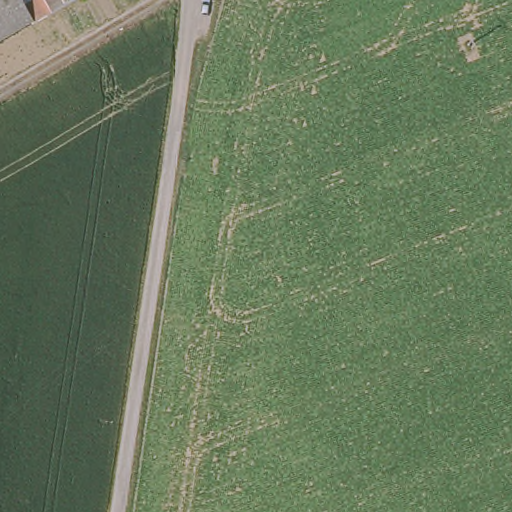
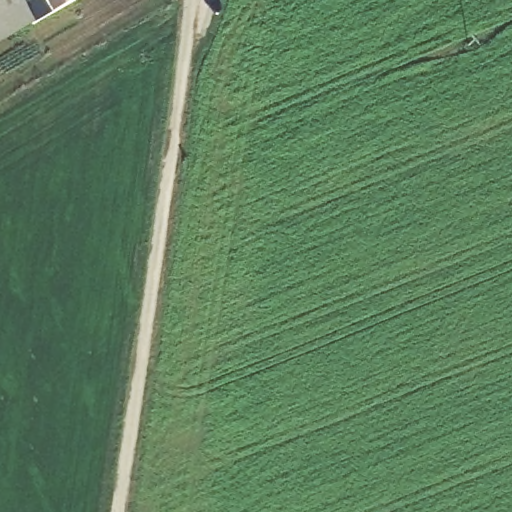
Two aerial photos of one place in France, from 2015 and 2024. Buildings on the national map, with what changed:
unchanged [(0,0),(14,0),(15,3),(25,20),(0,35),(0,0)]
unchanged [(20,0),(67,0),(55,7),(27,23),(25,20),(15,3),(20,0)]

